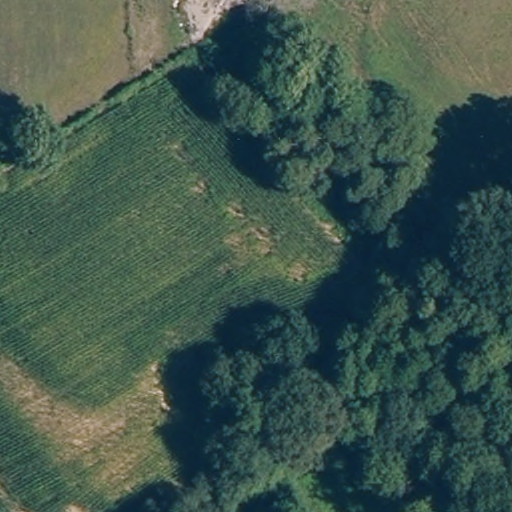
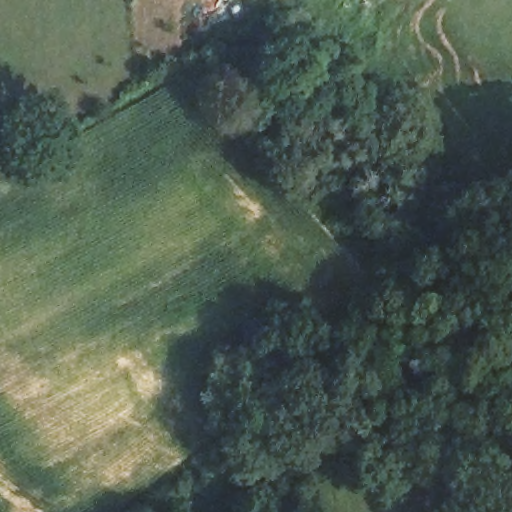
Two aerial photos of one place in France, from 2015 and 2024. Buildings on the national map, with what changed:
[]

